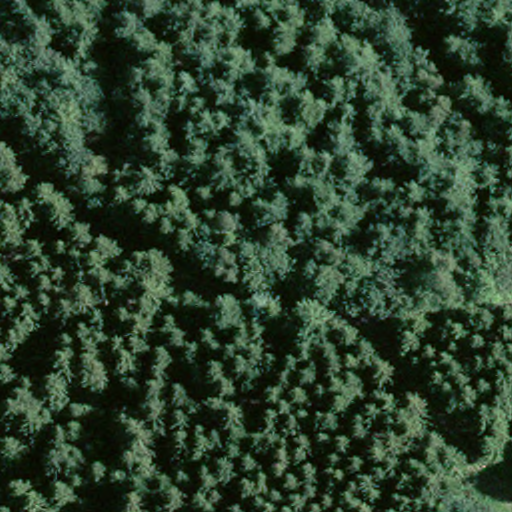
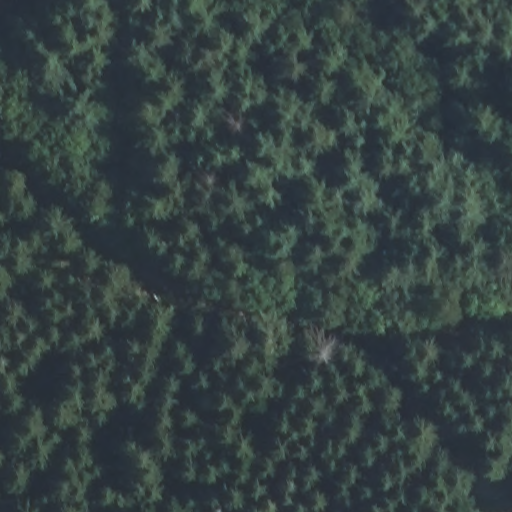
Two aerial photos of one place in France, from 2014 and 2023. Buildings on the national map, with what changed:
[]

